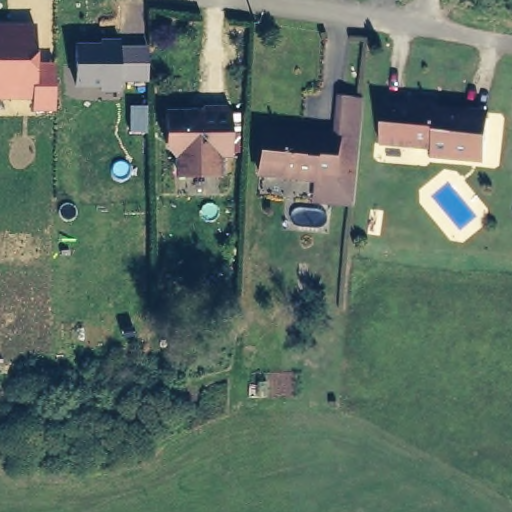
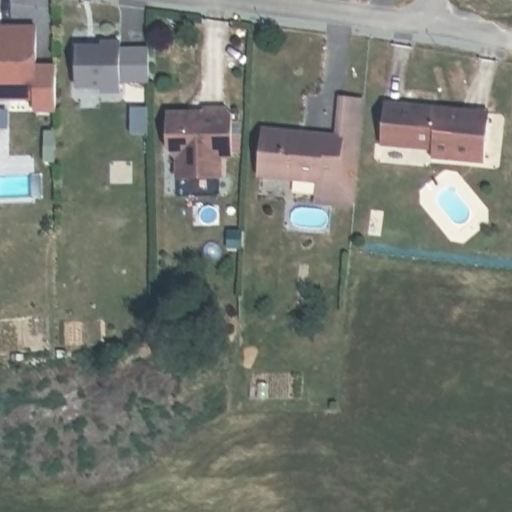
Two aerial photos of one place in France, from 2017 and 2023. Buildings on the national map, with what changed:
unchanged [(32,111),(32,101),(0,101),(0,25),(37,25),(37,64),(53,63),(54,112),(32,111)]
unchanged [(101,44),(100,39),(120,39),(120,45),(148,47),(148,81),(120,81),(119,92),(100,91),(100,87),(74,86),(75,44),(101,44)]
unchanged [(441,103),(494,107),(489,150),(437,145),(438,137),(384,132),(388,92),(442,96),(441,103)]
unchanged [(264,137),(334,142),(338,101),(364,102),(354,204),(316,202),(317,179),(260,173),(264,137)]
unchanged [(232,154),(219,154),(219,175),(178,175),(178,154),(166,143),(166,112),(198,112),(203,107),(226,106),(231,112),(232,154)]

